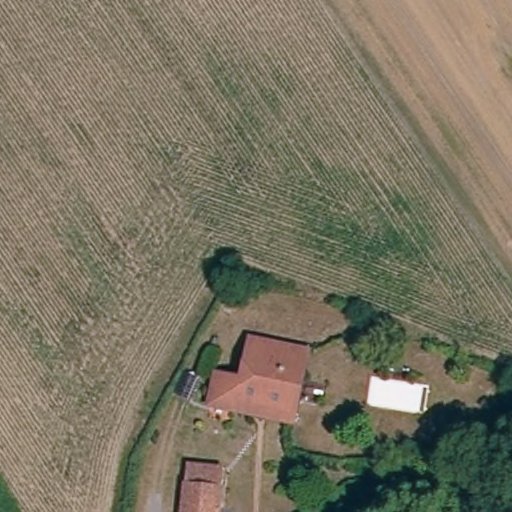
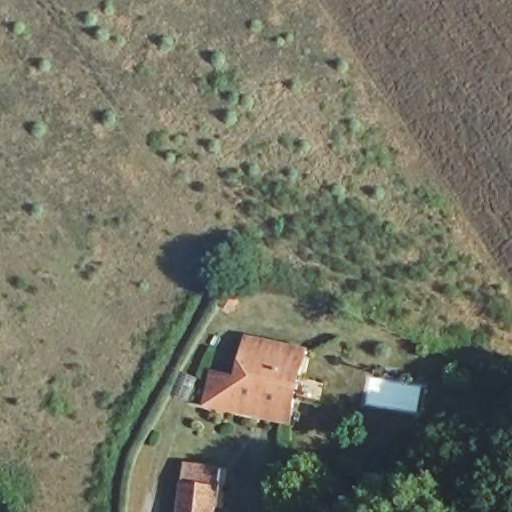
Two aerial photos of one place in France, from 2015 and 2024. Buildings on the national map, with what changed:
unchanged [(214,380),(241,386),(251,344),(306,357),(290,428),(208,409),(214,380)]
unchanged [(184,512),(189,470),(223,474),(218,512),(184,512)]

